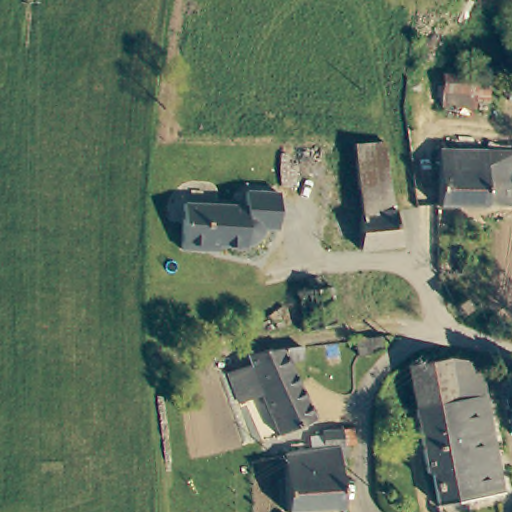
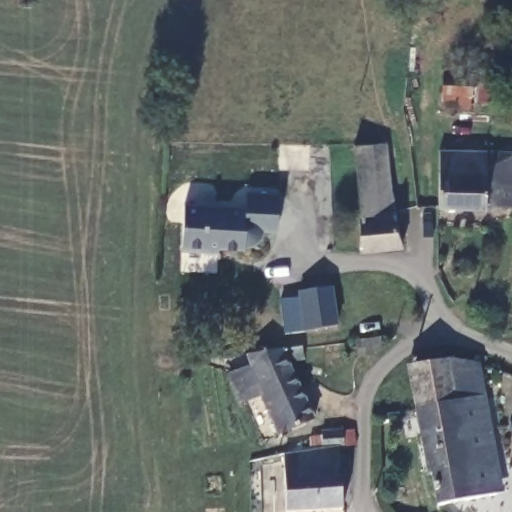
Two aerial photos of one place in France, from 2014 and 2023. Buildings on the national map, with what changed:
unchanged [(439,112),(440,79),(475,82),(475,113),(439,112)]
unchanged [(365,252),(351,145),(382,142),(392,207),(396,207),(396,210),(408,249),(365,252)]
unchanged [(442,205),(444,150),(512,153),(512,208),(442,205)]
unchanged [(279,235),(264,235),(263,237),(263,240),(262,241),(261,242),(260,245),(259,245),(257,247),(256,247),(255,248),(255,249),(254,249),(252,250),(250,250),(248,250),(246,250),(245,250),(245,254),(209,252),(209,257),(182,256),(184,210),(245,212),(246,198),(278,200),(279,235)]
demolished [(304,331),(296,289),(333,286),(335,323),(304,331)]
unchanged [(378,362),(357,362),(357,360),(362,343),(385,340),(378,362)]
unchanged [(265,425),(275,421),(271,412),(270,412),(246,357),(303,350),(305,360),(293,363),(307,396),(316,417),(280,432),(271,437),(265,425)]
unchanged [(406,368),(446,360),(455,403),(412,414),(404,370),(406,368)]
unchanged [(436,507),(430,472),(425,473),(412,414),(455,403),(446,360),(474,365),(500,495),(436,507)]
unchanged [(291,506),(285,451),(322,447),(321,431),(345,430),(345,444),(350,443),(352,457),(339,458),(345,505),(291,506)]

